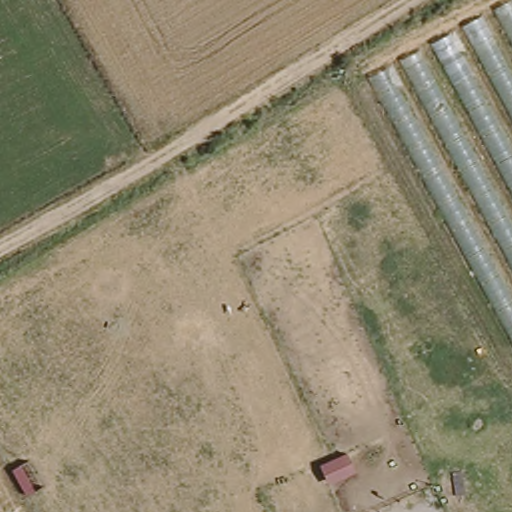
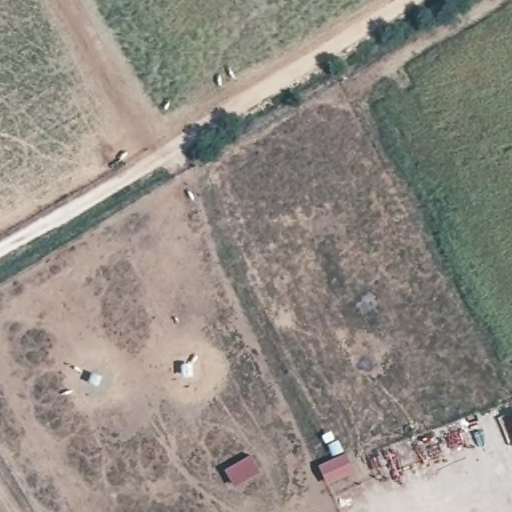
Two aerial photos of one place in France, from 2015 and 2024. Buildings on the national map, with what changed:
demolished [(371,72),(508,0),(512,0),(512,333),(371,72)]

